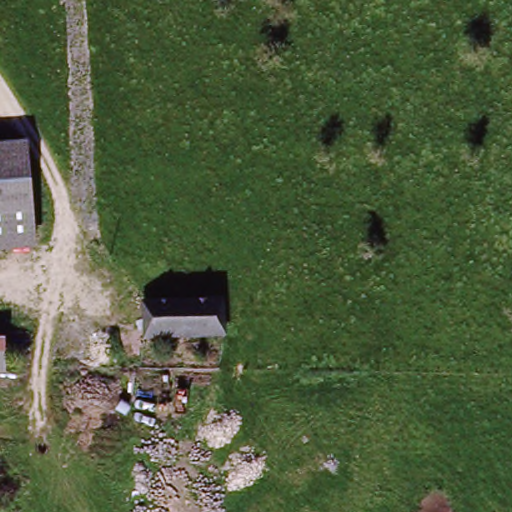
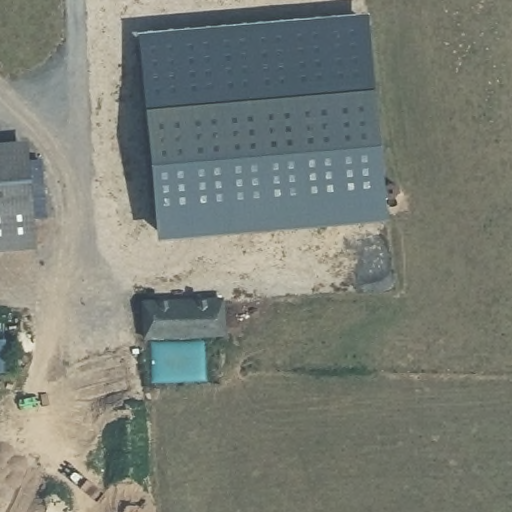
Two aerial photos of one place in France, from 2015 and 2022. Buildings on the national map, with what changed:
new [(376,90),(384,200),(159,218),(151,109),(376,90)]
unchanged [(36,239),(0,245),(0,142),(24,140),(36,239)]
new [(386,220),(158,239),(156,219),(159,218),(384,200),(386,220)]
unchanged [(141,300),(223,302),(222,331),(139,329),(141,300)]
unchanged [(0,377),(0,332),(12,332),(11,376),(0,377)]

